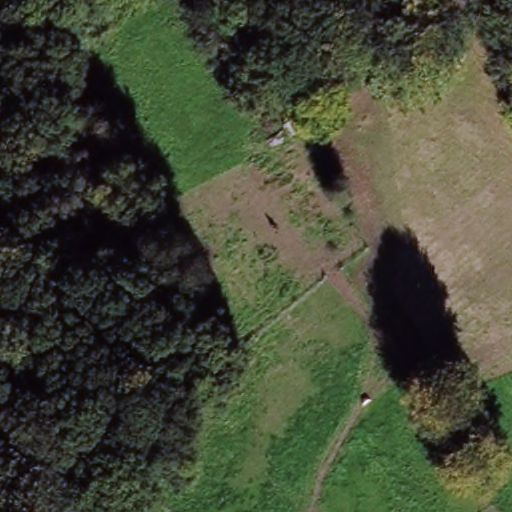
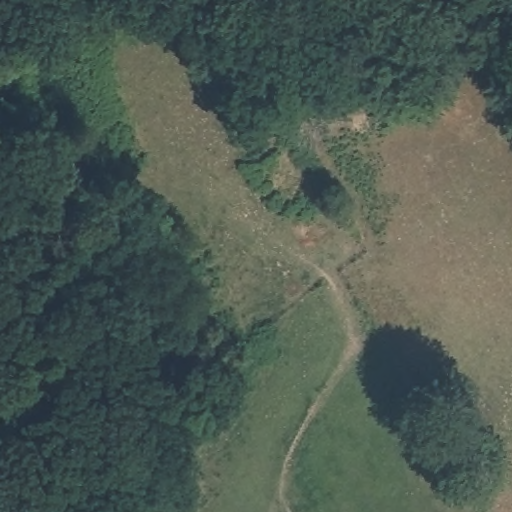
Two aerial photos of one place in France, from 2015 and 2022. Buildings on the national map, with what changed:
[]

